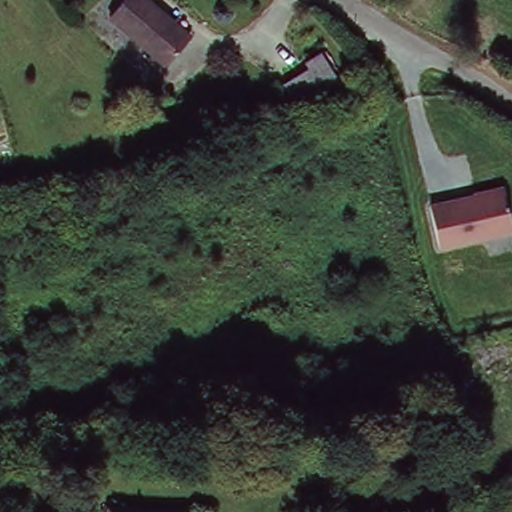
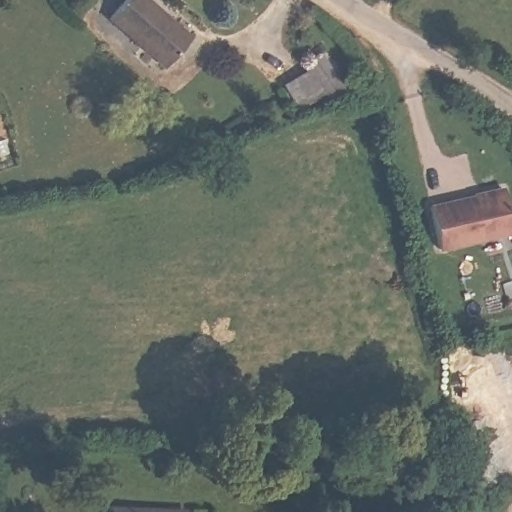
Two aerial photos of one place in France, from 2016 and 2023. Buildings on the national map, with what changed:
unchanged [(131,0),(153,0),(194,35),(170,64),(117,17),(131,0)]
unchanged [(310,66),(307,59),(325,49),(349,87),(330,99),(326,92),(304,104),(292,78),(310,66)]
unchanged [(512,223),(512,236),(438,253),(428,202),(504,188),(512,223)]
unchanged [(414,445),(416,457),(396,458),(395,445),(414,445)]
unchanged [(189,512),(113,512),(114,510),(190,510),(189,512)]

